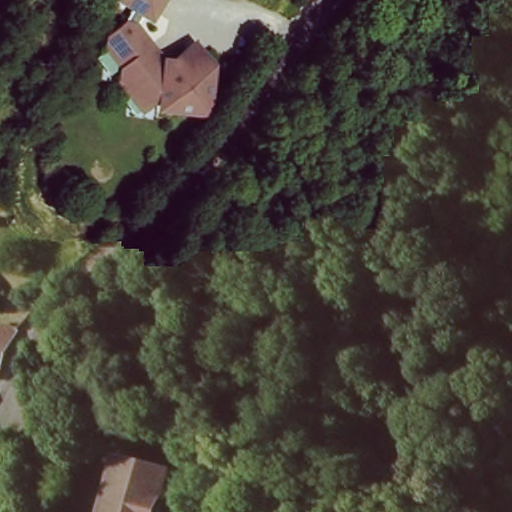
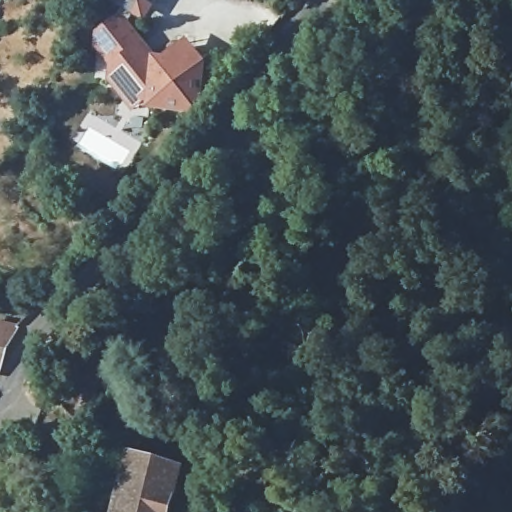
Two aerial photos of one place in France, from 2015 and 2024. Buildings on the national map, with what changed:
unchanged [(140,15),(138,15),(129,19),(126,21),(119,32),(134,50),(132,51),(136,60),(141,65),(156,66),(170,54),(183,55),(191,63),(190,71),(196,78),(195,93),(193,106),(191,110),(183,116),(153,115),(144,102),(115,99),(106,88),(105,83),(106,74),(113,66),(101,54),(91,52),(91,44),(97,39),(106,30),(115,15),(110,12),(107,0),(148,0),(140,15)]
unchanged [(107,281),(136,255),(162,232),(187,262),(119,320),(116,316),(95,292),(107,281)]
unchanged [(12,330),(3,349),(0,357),(0,326),(13,328),(12,330)]
unchanged [(170,512),(116,512),(130,460),(180,472),(170,512)]

